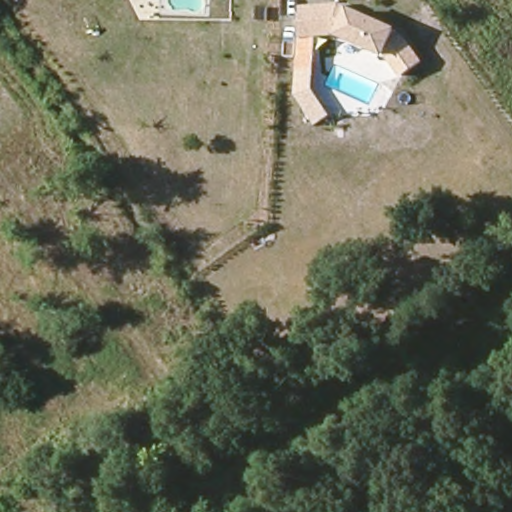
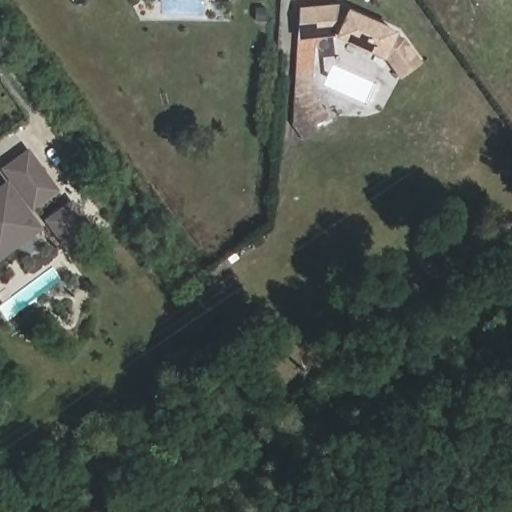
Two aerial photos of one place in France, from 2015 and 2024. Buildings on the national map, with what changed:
unchanged [(316,126),(295,94),(298,7),(348,5),(398,28),(424,62),(400,78),(385,58),(334,35),(317,39),(314,92),(330,116),(316,126)]
new [(34,205),(22,189),(6,167),(30,150),(46,172),(58,188),(34,205)]
new [(13,189),(40,225),(0,255),(0,189),(8,182),(13,189)]
unchanged [(114,436),(136,466),(91,497),(71,466),(114,436)]

